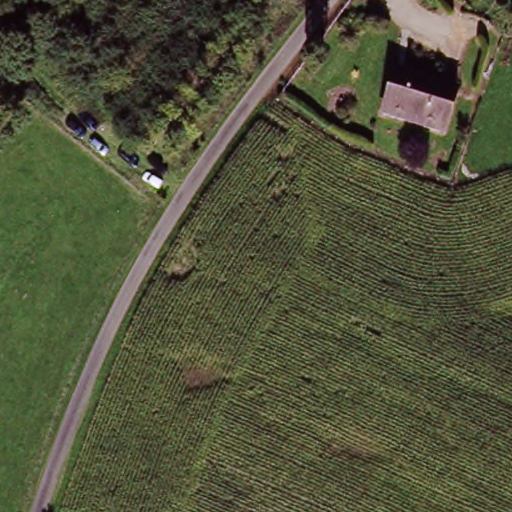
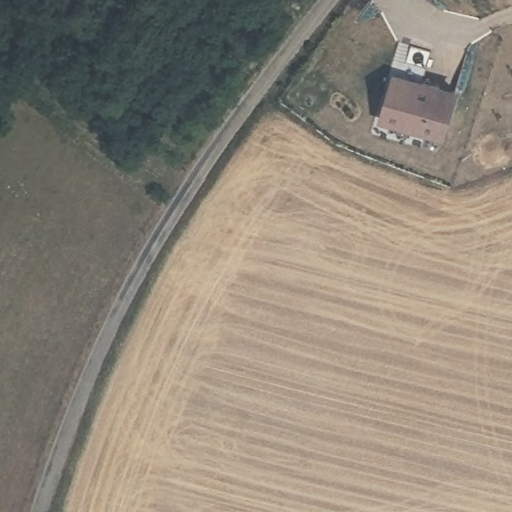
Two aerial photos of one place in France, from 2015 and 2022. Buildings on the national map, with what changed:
unchanged [(454,100),(440,140),(374,117),(388,76),(454,100)]

